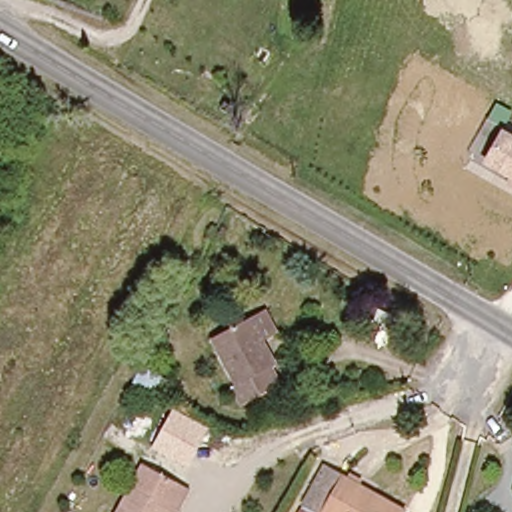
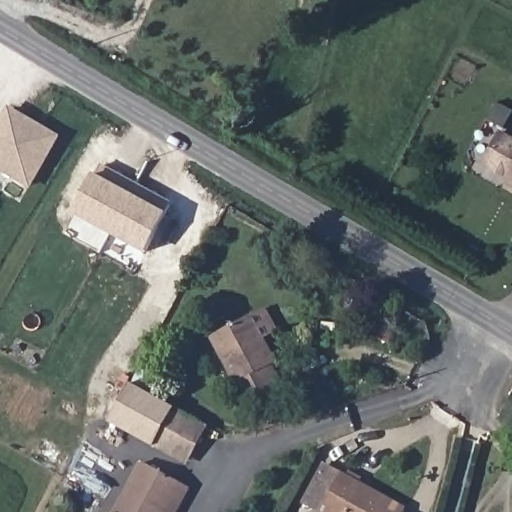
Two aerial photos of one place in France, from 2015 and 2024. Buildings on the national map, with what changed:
new [(0,168),(0,126),(9,109),(58,137),(30,186),(0,168)]
unchanged [(499,164),(512,142),(512,172),(499,164)]
new [(74,212),(100,164),(172,203),(146,251),(74,212)]
unchanged [(248,316),(275,364),(273,365),(282,382),(244,403),(235,384),(238,383),(212,336),(248,316)]
new [(153,448),(108,421),(130,384),(174,410),(153,448)]
unchanged [(209,427),(189,467),(153,448),(174,410),(209,427)]
unchanged [(306,495),(325,460),(408,506),(405,512),(323,512),(325,506),(306,495)]
unchanged [(178,482),(187,487),(174,512),(117,512),(143,462),(178,482)]
new [(336,512),(316,512),(318,508),(303,500),(306,495),(325,506),(336,512)]

